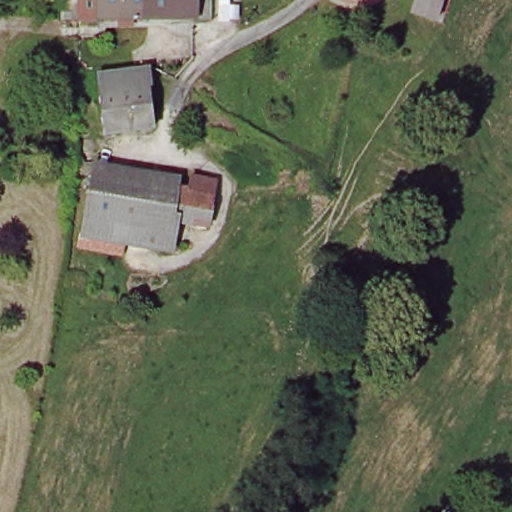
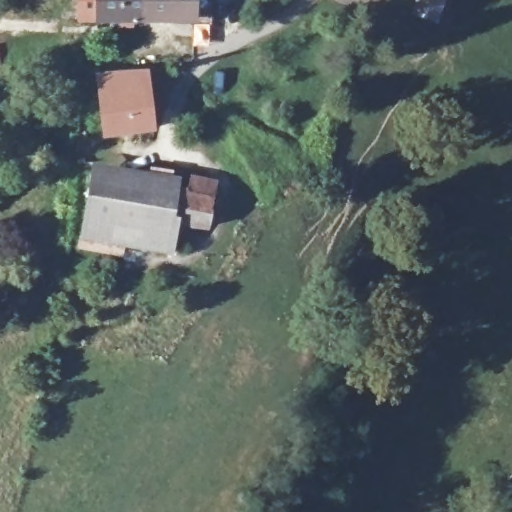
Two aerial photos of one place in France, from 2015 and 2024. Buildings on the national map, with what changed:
unchanged [(209,26),(192,26),(192,21),(100,21),(100,0),(209,0),(209,26)]
unchanged [(432,16),(432,17),(415,10),(418,0),(438,0),(432,16)]
unchanged [(152,119),(106,125),(101,85),(147,80),(152,119)]
unchanged [(182,170),(217,178),(207,235),(177,230),(172,255),(77,239),(88,161),(180,179),(182,170)]

